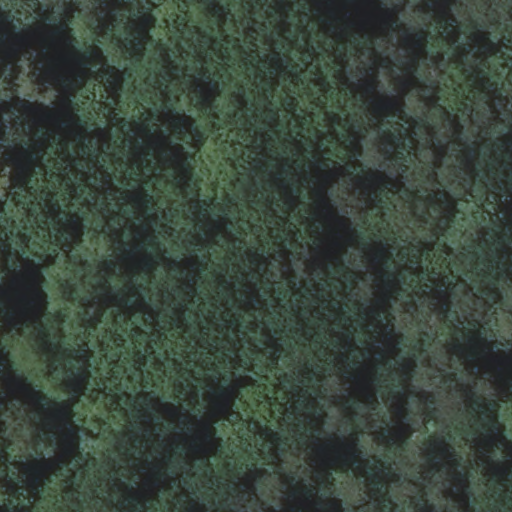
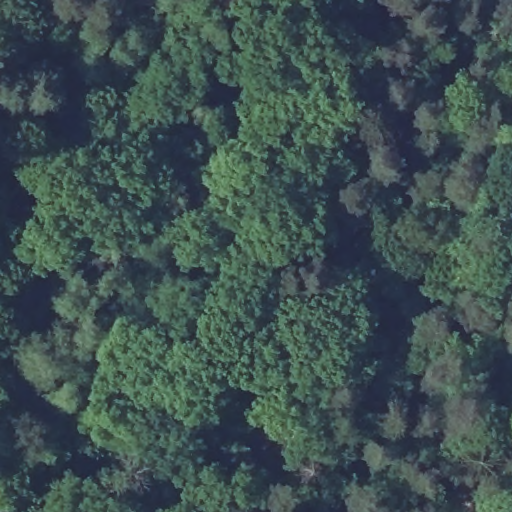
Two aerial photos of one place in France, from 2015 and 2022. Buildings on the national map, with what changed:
unchanged [(35,199),(15,210),(0,184),(0,181),(18,170),(35,199)]

